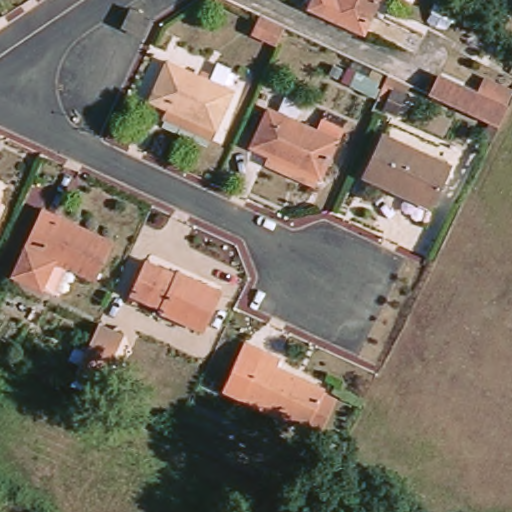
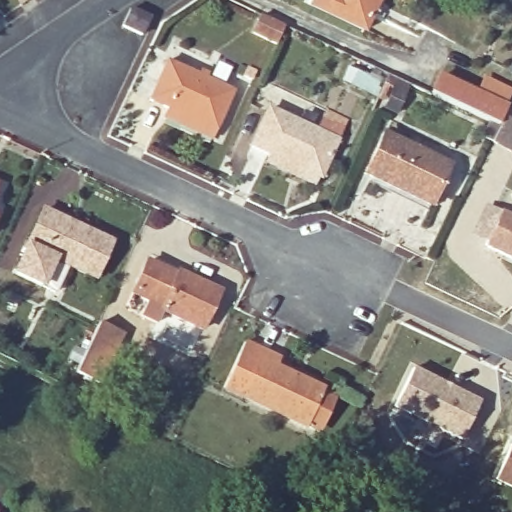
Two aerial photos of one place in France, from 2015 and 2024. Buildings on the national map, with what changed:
unchanged [(303,8),(307,0),(373,0),(357,34),(303,8)]
unchanged [(138,33),(121,25),(128,8),(146,15),(138,33)]
unchanged [(261,16),(279,24),(271,44),(251,34),(261,16)]
unchanged [(161,116),(166,108),(146,99),(165,60),(231,89),(212,129),(211,129),(206,139),(161,116)]
new [(369,65),(410,84),(397,115),(382,109),(388,98),(349,79),(355,68),(365,73),(369,65)]
unchanged [(501,109),(492,129),(424,96),(433,76),(501,109)]
unchanged [(264,107),(332,138),(314,175),(311,175),(307,184),(261,164),(265,154),(247,145),(264,107)]
unchanged [(382,138),(445,169),(426,208),(363,177),(382,138)]
unchanged [(38,285),(11,272),(40,209),(110,242),(92,279),(52,259),(38,285)]
new [(512,217),(512,258),(487,245),(503,213),(512,217)]
unchanged [(171,270),(216,292),(198,329),(157,309),(159,304),(128,289),(143,260),(170,273),(171,270)]
unchanged [(96,384),(74,373),(96,324),(119,334),(96,384)]
unchanged [(247,344),(280,362),(276,369),(320,393),(301,429),(223,389),(247,344)]
new [(461,441),(392,408),(412,367),(480,401),(461,441)]
new [(512,485),(497,478),(512,446),(512,485)]

